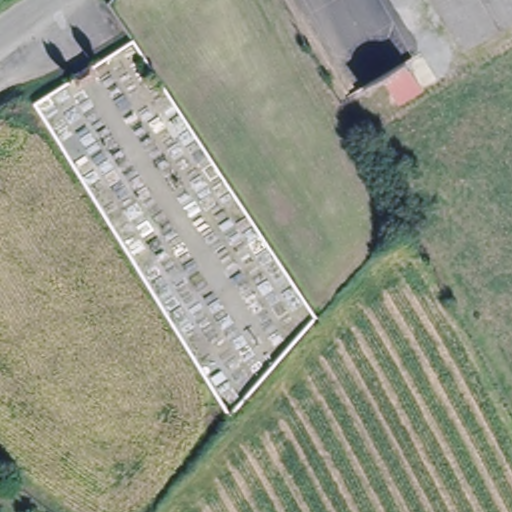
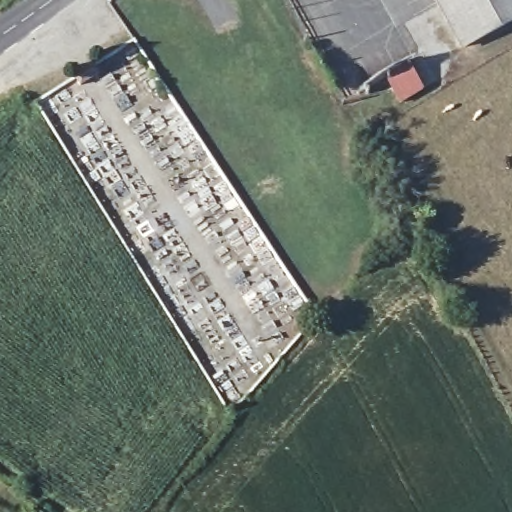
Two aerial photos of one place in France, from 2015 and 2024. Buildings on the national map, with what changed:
unchanged [(430,0),(512,0),(512,21),(457,50),(430,0)]
unchanged [(427,95),(405,111),(388,81),(409,69),(427,95)]

